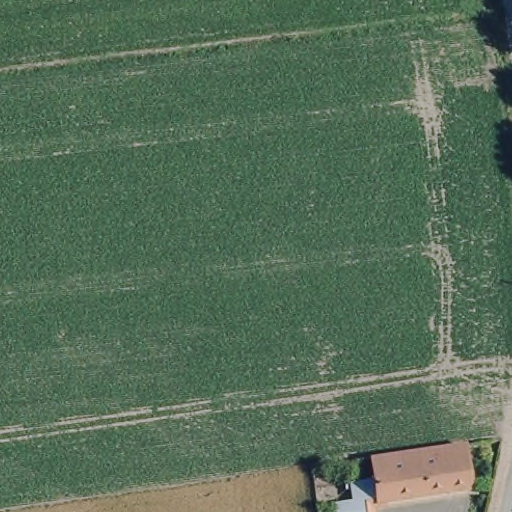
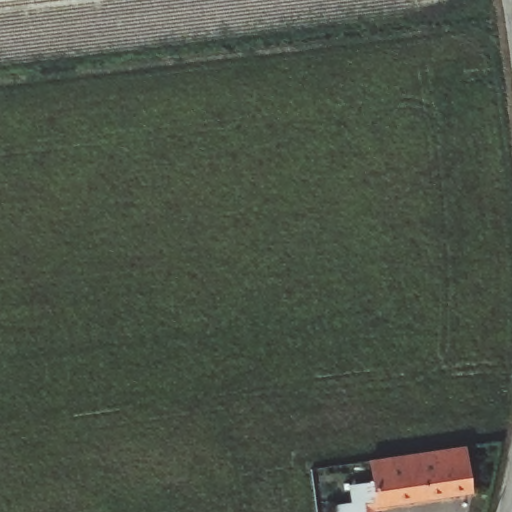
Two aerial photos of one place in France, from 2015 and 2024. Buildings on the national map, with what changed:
unchanged [(467,446),(474,492),(385,507),(382,505),(370,505),(367,485),(376,485),(372,463),(467,446)]

